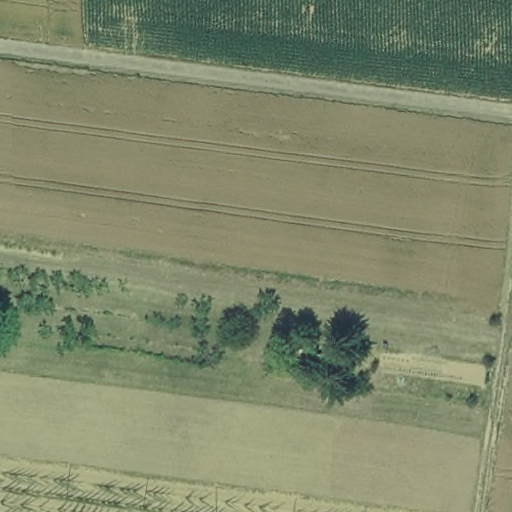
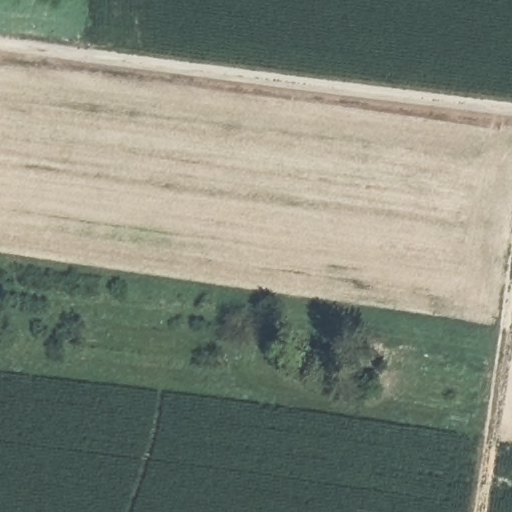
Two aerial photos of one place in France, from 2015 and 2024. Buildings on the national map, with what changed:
unchanged [(295,338),(315,341),(313,350),(327,352),(323,375),(289,373),(295,338)]

